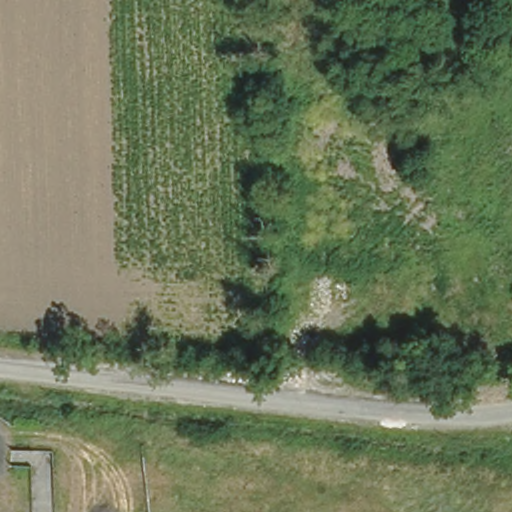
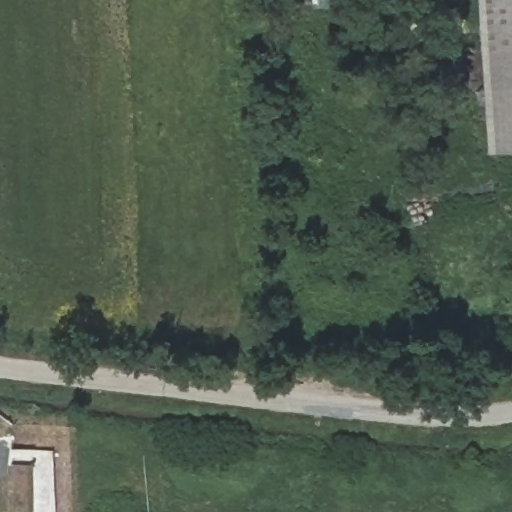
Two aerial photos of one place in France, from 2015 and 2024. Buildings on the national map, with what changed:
new [(487,152),(477,0),(512,0),(512,150),(487,152)]

